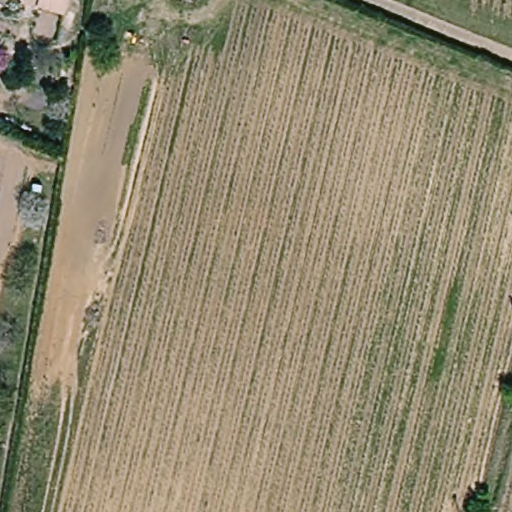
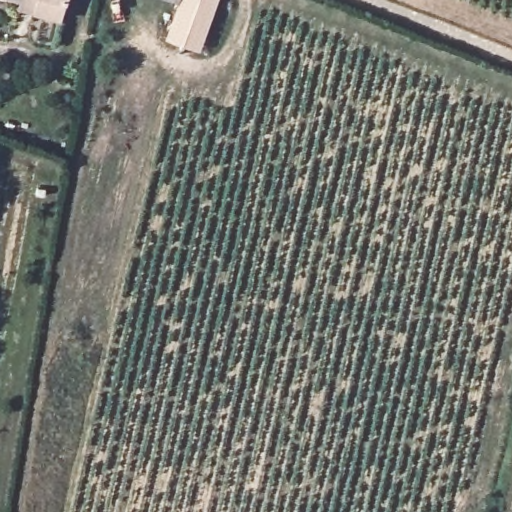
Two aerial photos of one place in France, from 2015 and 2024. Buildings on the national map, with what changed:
unchanged [(3,0),(42,0),(40,9),(3,0)]
unchanged [(40,15),(40,9),(42,0),(71,0),(67,21),(40,15)]
new [(164,37),(178,0),(218,0),(199,51),(164,37)]

